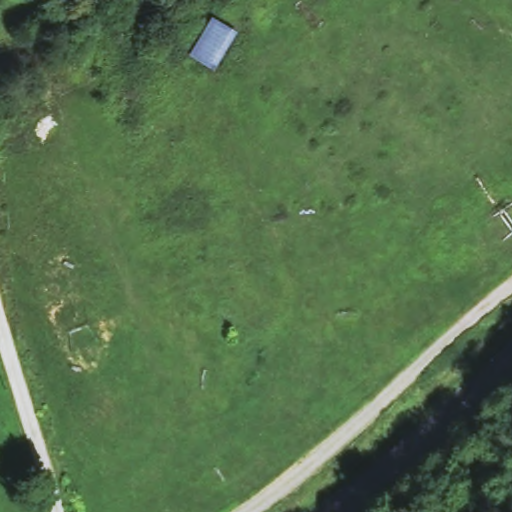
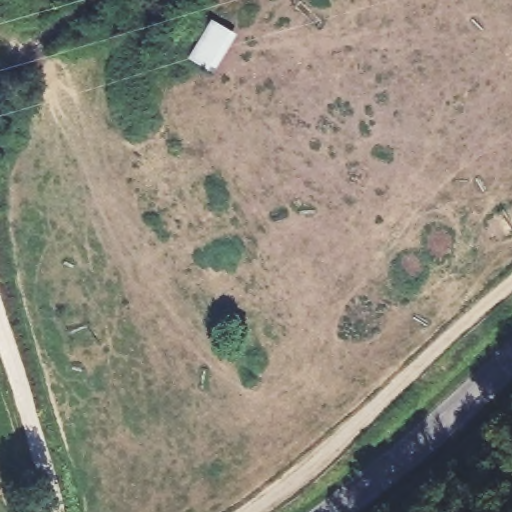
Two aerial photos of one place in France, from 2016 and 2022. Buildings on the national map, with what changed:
unchanged [(235,30),(211,71),(183,55),(208,16),(235,30)]

